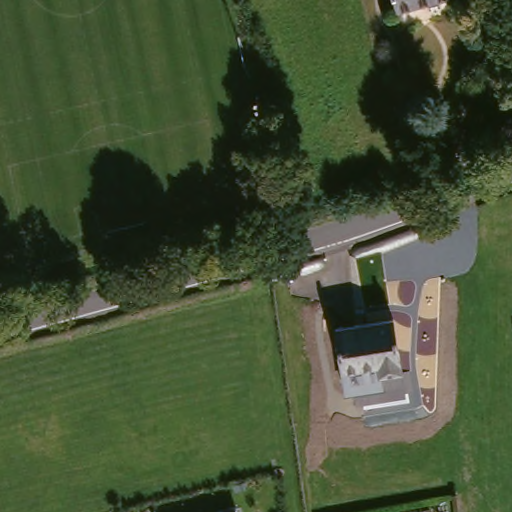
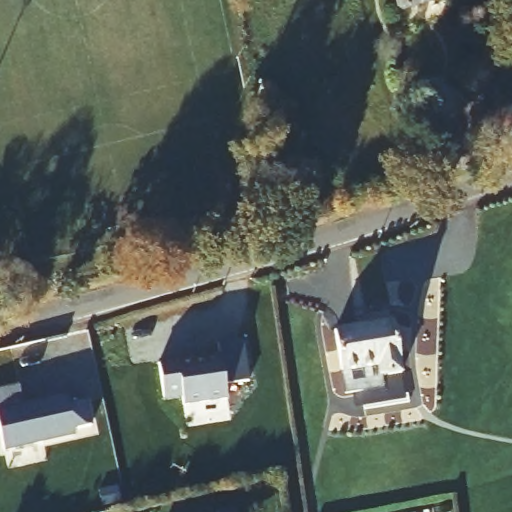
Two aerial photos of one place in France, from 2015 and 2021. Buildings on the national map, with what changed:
unchanged [(386,13),(383,0),(436,0),(386,13)]
unchanged [(373,379),(372,370),(337,376),(329,333),(388,324),(396,375),(373,379)]
new [(182,358),(182,361),(224,357),(222,343),(247,340),(252,382),(227,384),(229,399),(185,404),(184,396),(165,398),(162,361),(182,358)]
new [(19,387),(22,406),(67,396),(69,406),(86,402),(91,426),(73,430),(74,435),(3,449),(0,435),(0,392),(19,387)]
unchanged [(237,512),(224,512),(236,509),(237,512)]

